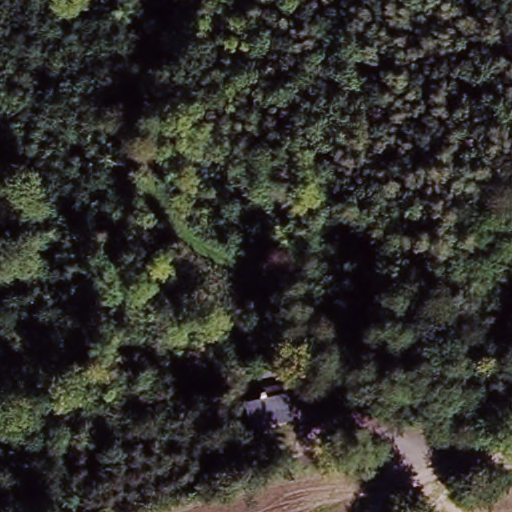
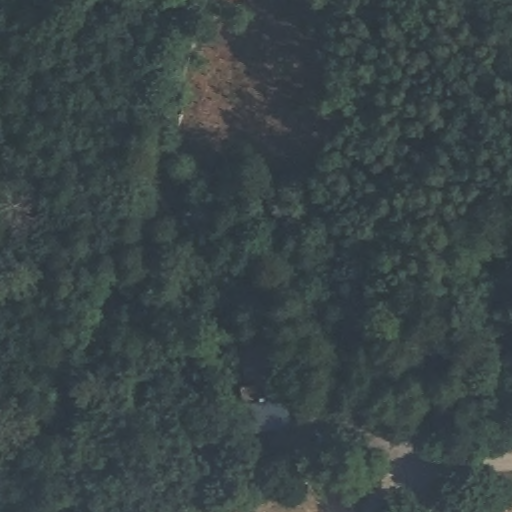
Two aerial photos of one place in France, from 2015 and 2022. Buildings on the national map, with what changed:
unchanged [(287,408),(292,435),(252,443),(247,416),(287,408)]

